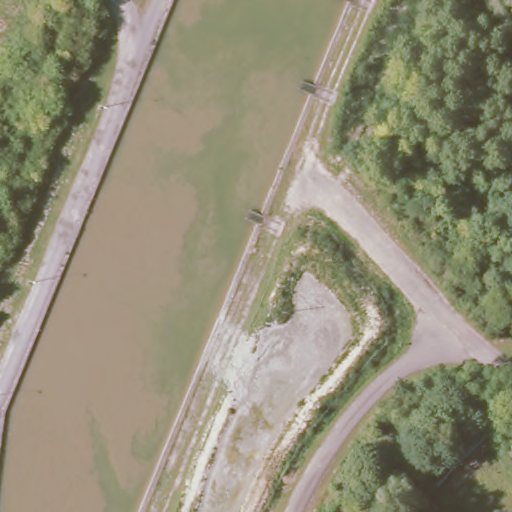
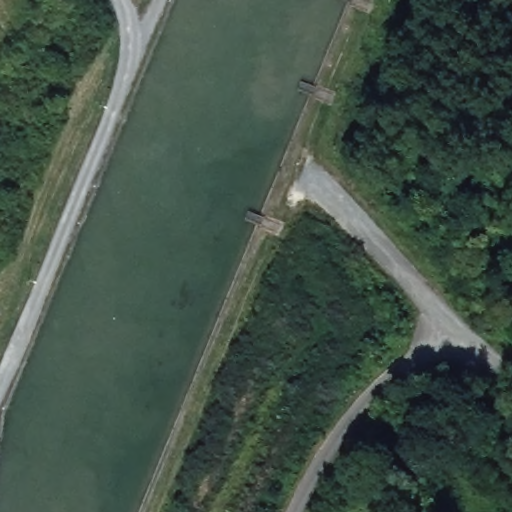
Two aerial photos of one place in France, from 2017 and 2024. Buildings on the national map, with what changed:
[]

